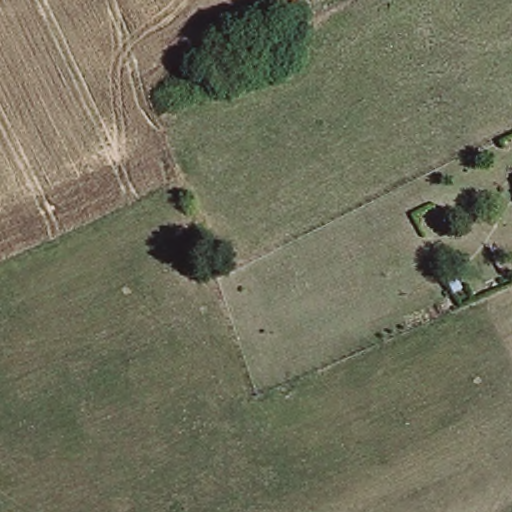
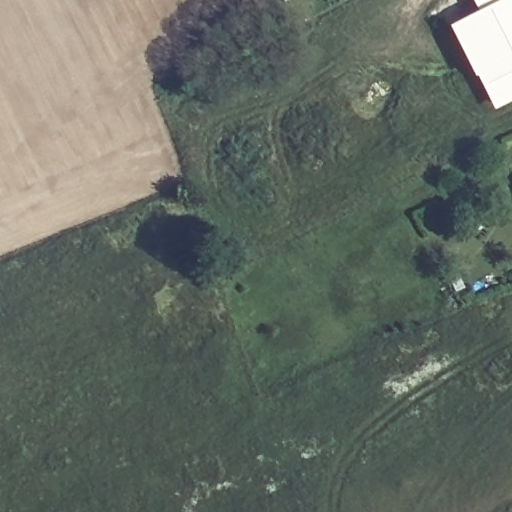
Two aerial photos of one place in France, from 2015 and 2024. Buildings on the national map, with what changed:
unchanged [(283,0),(288,0),(283,2),(283,0)]
new [(467,0),(512,0),(512,104),(492,114),(466,70),(444,28),(473,13),(467,0)]

